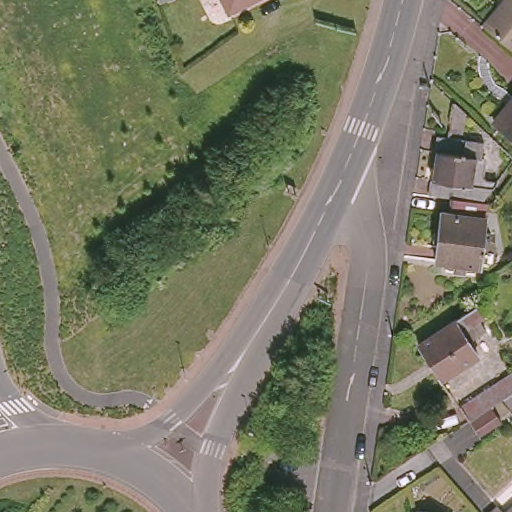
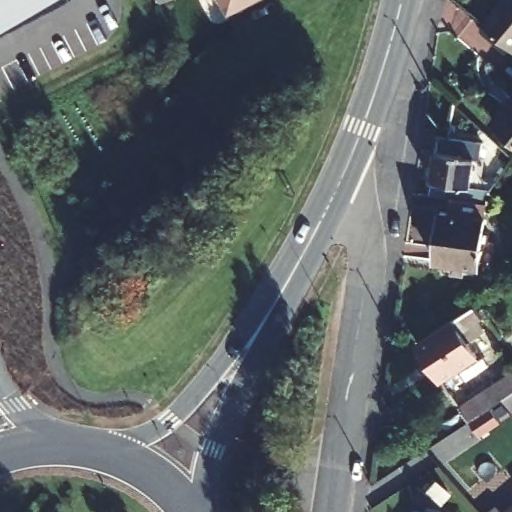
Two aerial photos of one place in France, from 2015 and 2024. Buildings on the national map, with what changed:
new [(0,35),(0,0),(67,0),(0,35)]
unchanged [(234,14),(227,0),(258,0),(234,14)]
unchanged [(482,21),(499,0),(512,0),(512,47),(482,21)]
unchanged [(490,115),(512,89),(512,134),(490,115)]
unchanged [(462,111),(459,130),(447,129),(451,102),(462,111)]
unchanged [(476,267),(431,261),(438,210),(449,210),(451,197),(428,194),(430,178),(435,135),(481,141),(479,157),(481,158),(478,183),(490,185),(479,201),(484,202),(476,267)]
unchanged [(439,377),(414,340),(473,301),(481,313),(476,317),(483,328),(466,339),(474,352),(439,377)]
unchanged [(496,400),(467,419),(457,404),(512,368),(512,411),(509,414),(498,399),(496,400)]
unchanged [(448,512),(451,512),(409,512),(409,506),(448,512)]
unchanged [(506,512),(512,507),(512,512),(506,512)]
unchanged [(493,512),(491,512),(493,511),(493,512)]

